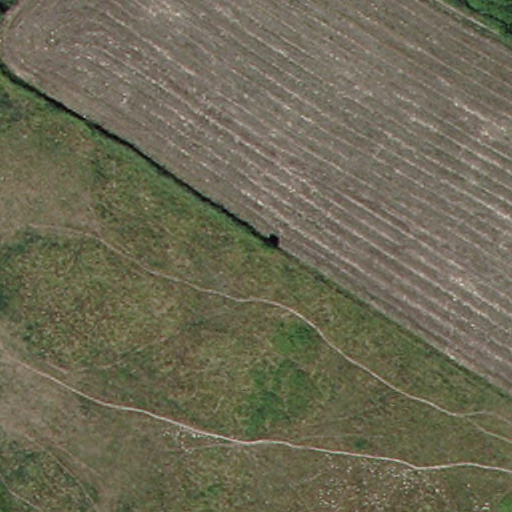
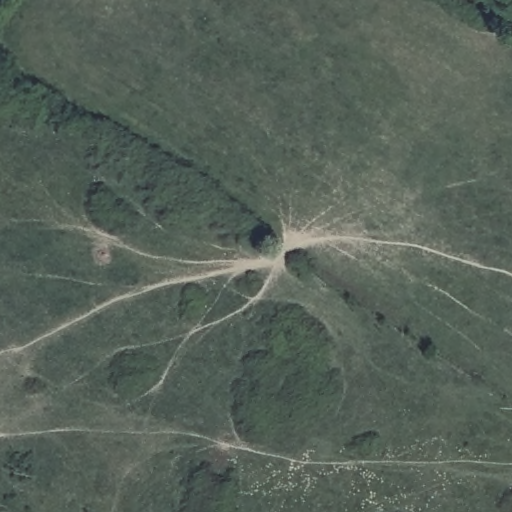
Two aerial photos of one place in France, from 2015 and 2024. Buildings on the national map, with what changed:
[]

